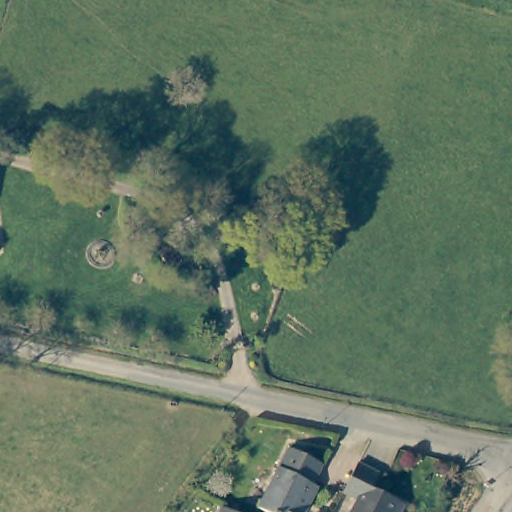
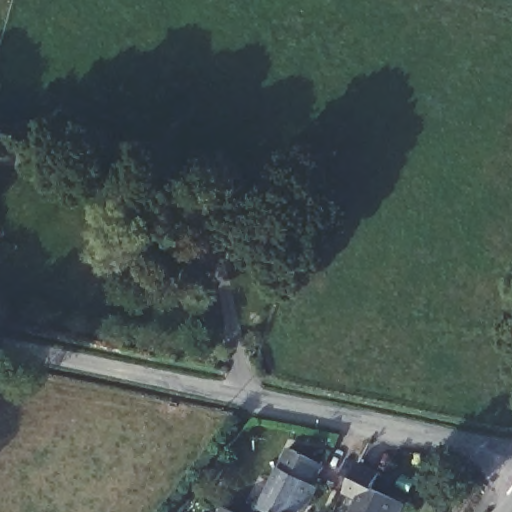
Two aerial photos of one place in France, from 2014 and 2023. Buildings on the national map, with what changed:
unchanged [(288,446),(321,462),(313,480),(319,485),(311,501),(306,499),(301,510),(298,510),(297,512),(266,512),(257,507),(288,446)]
unchanged [(374,473),(368,487),(402,505),(398,512),(349,512),(355,501),(340,492),(355,464),(374,473)]
unchanged [(218,512),(222,506),(234,512),(218,512)]

